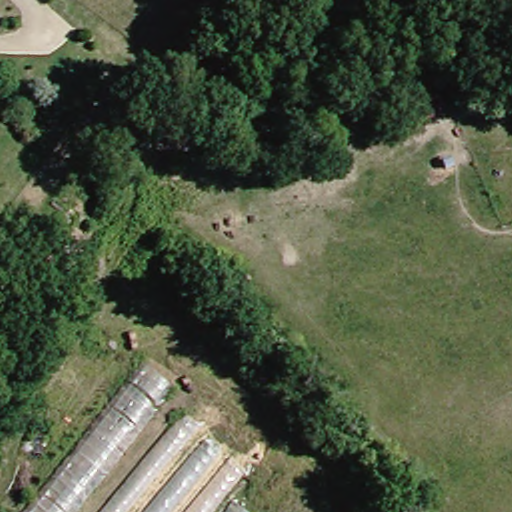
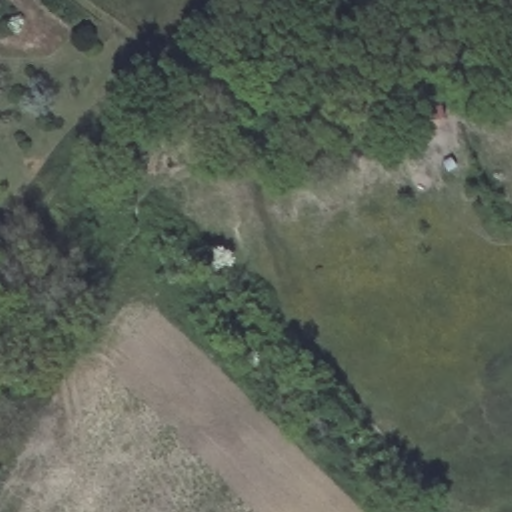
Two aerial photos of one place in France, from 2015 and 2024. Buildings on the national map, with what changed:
demolished [(165,387),(68,512),(22,512),(136,364),(165,387)]
demolished [(186,416),(247,473),(227,497),(243,512),(105,512),(186,416)]

